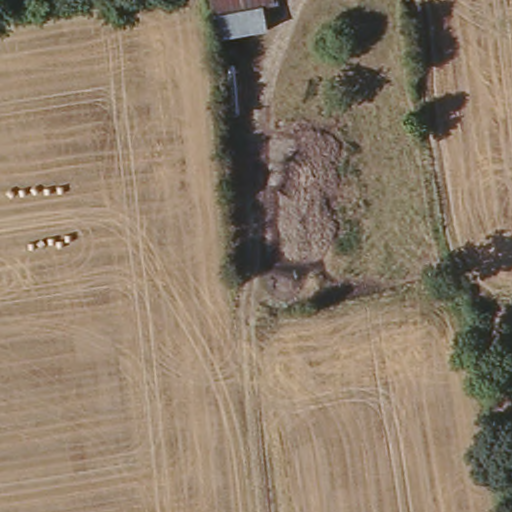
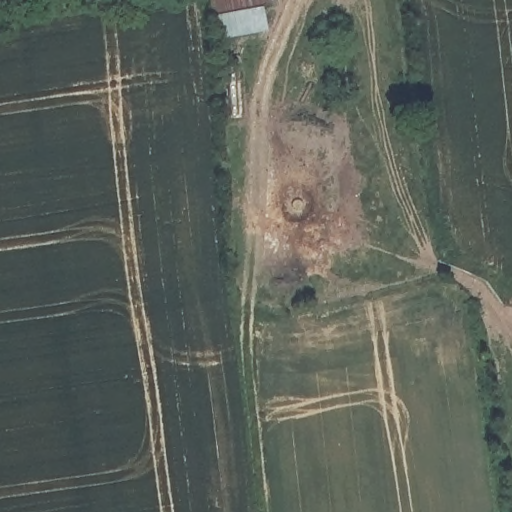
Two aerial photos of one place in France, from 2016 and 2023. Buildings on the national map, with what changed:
unchanged [(260,9),(262,32),(215,36),(213,13),(260,9)]

